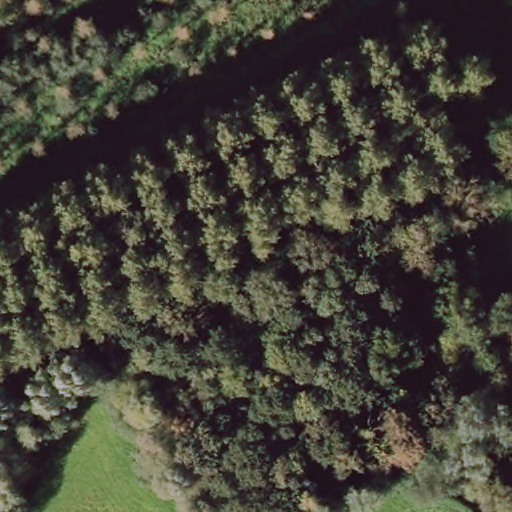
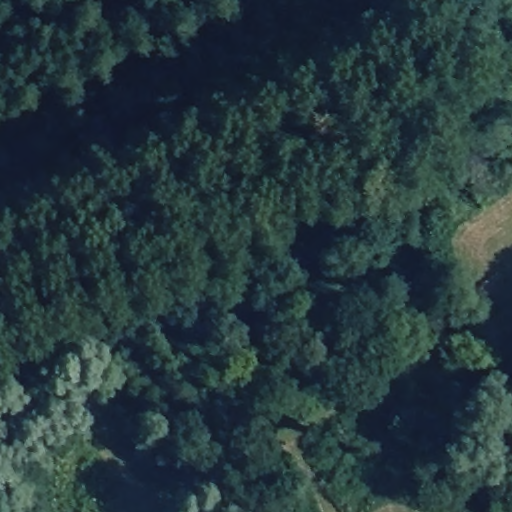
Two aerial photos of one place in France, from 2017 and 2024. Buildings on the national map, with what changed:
[]

